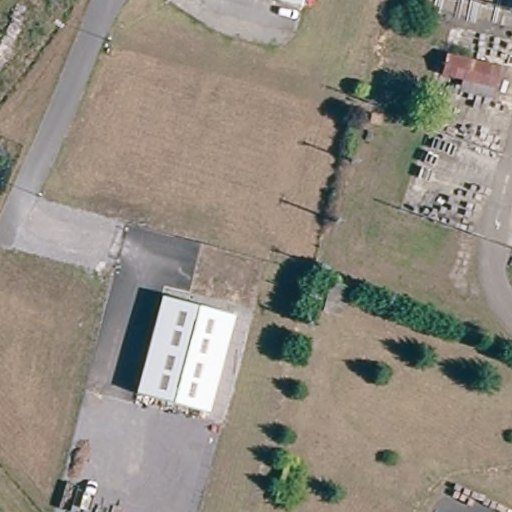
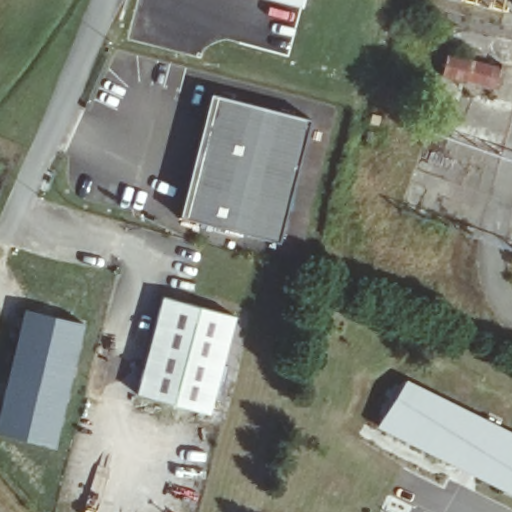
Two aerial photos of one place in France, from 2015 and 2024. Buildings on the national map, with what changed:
unchanged [(277,0),(302,0),(301,7),(277,0)]
unchanged [(497,69),(489,97),(459,90),(462,79),(441,74),(446,55),(497,69)]
new [(214,94),(309,119),(277,242),(182,217),(214,94)]
unchanged [(235,317),(211,412),(136,392),(161,296),(235,317)]
new [(24,307),(87,322),(56,446),(0,432),(0,411),(24,307)]
new [(512,494),(378,430),(406,380),(512,432),(512,494)]

